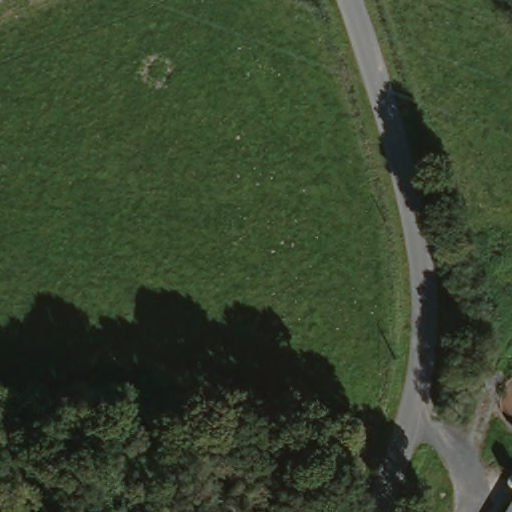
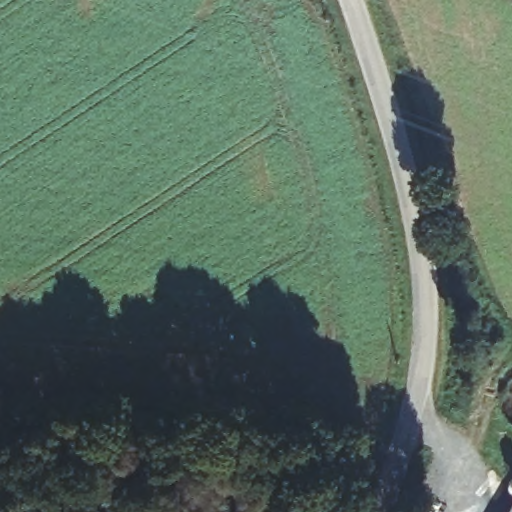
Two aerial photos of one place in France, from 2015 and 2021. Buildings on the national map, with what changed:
unchanged [(511,512),(512,511),(512,512),(511,512)]

